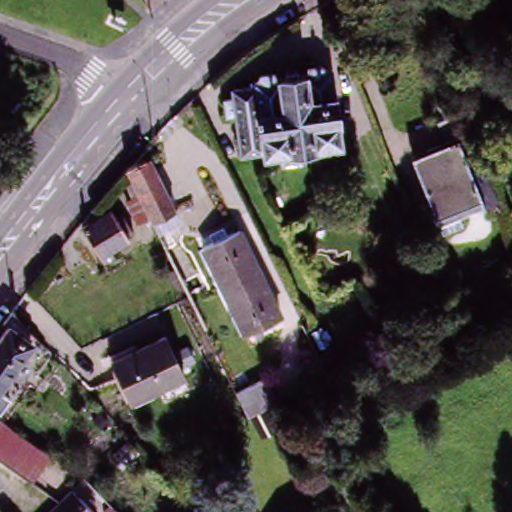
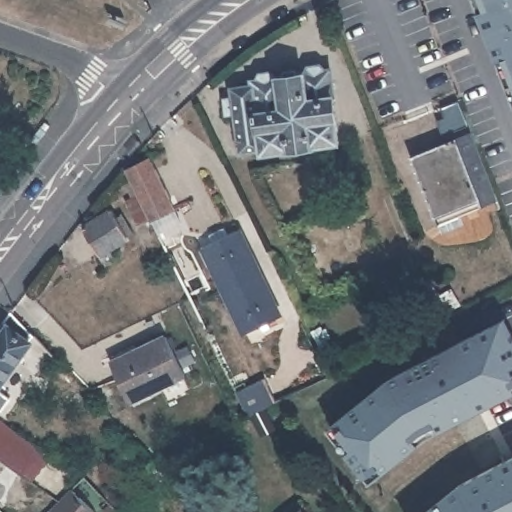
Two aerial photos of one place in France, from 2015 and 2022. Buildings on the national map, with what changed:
new [(477,0),(512,0),(512,95),(477,0)]
unchanged [(257,90),(256,84),(263,83),(265,76),(276,75),(280,80),(290,79),(289,74),(300,72),(301,77),(310,76),(313,70),(324,69),(327,73),(334,72),(345,147),(267,159),(266,153),(245,156),(238,119),(229,120),(227,103),(236,101),(235,92),(257,90)]
unchanged [(451,110),(458,127),(432,138),(425,123),(433,120),(430,110),(448,103),(451,110)]
unchanged [(488,202),(454,215),(457,226),(437,234),(426,205),(406,157),(418,152),(461,135),(488,202)]
unchanged [(127,202),(140,196),(126,169),(150,156),(175,206),(151,219),(150,216),(137,223),(127,202)]
unchanged [(87,219),(96,214),(99,219),(110,211),(115,220),(122,216),(131,235),(125,239),(126,240),(97,257),(81,229),(90,224),(87,219)]
unchanged [(204,247),(214,241),(211,235),(226,227),(230,234),(240,228),(282,312),(246,330),(204,247)]
unchanged [(171,260),(179,276),(171,280),(162,262),(170,258),(171,260)]
unchanged [(30,342),(33,344),(0,389),(0,351),(14,331),(7,326),(15,315),(35,336),(30,342)]
new [(348,450),(330,427),(338,420),(391,379),(504,320),(512,336),(512,393),(441,430),(429,436),(420,443),(385,471),(372,481),(348,450)]
unchanged [(162,332),(184,370),(130,401),(109,365),(162,332)]
unchanged [(259,431),(251,416),(249,417),(238,396),(267,381),(278,402),(265,409),(271,425),(259,431)]
unchanged [(1,416),(0,415),(0,390),(13,400),(1,416)]
unchanged [(36,485),(0,459),(0,422),(55,460),(36,485)]
unchanged [(130,441),(139,451),(125,465),(115,455),(130,441)]
new [(461,484),(512,458),(512,512),(426,512),(461,484)]
unchanged [(81,480),(105,506),(99,512),(49,512),(81,480)]
unchanged [(302,508),(306,512),(298,512),(302,508)]

